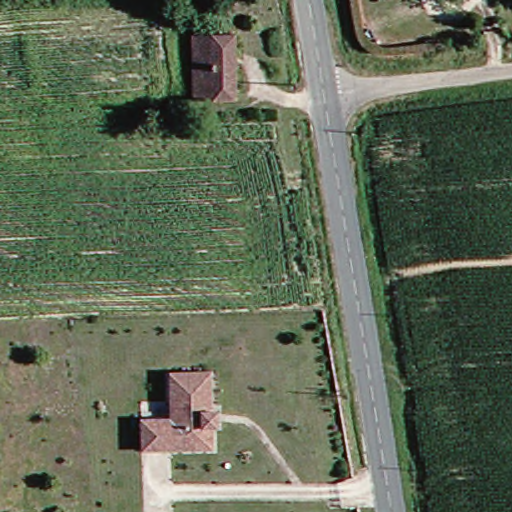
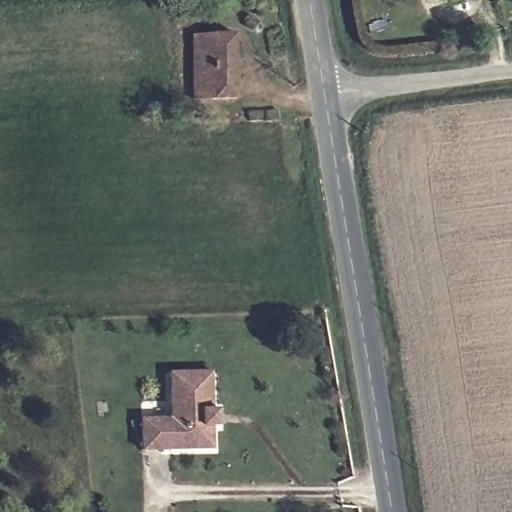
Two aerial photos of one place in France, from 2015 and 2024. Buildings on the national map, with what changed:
unchanged [(240,99),(197,101),(196,31),(238,30),(240,99)]
unchanged [(142,450),(141,418),(171,418),(170,372),(212,371),(213,410),(218,410),(218,426),(213,426),(213,450),(142,450)]

